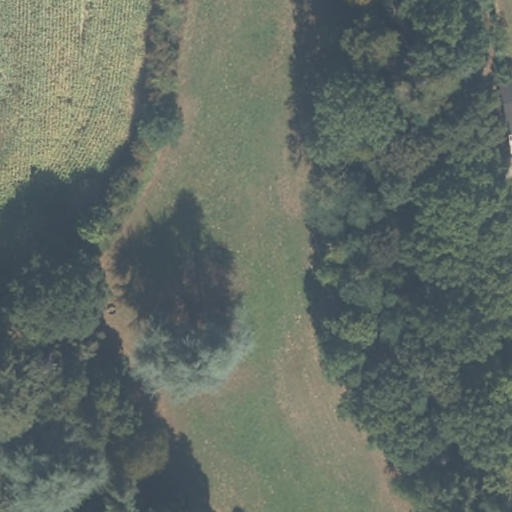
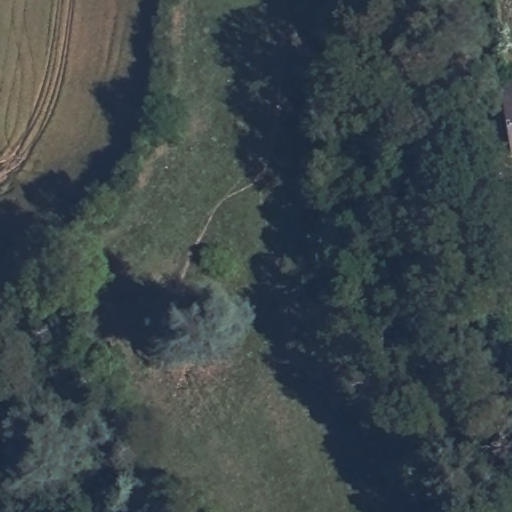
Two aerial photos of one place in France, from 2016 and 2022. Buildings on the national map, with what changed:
unchanged [(500,83),(512,81),(512,147),(500,83)]

